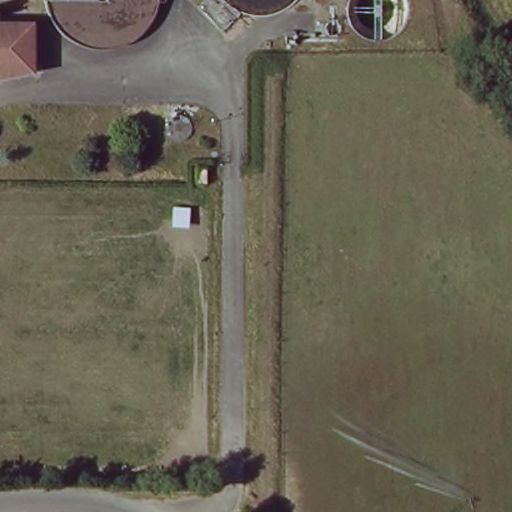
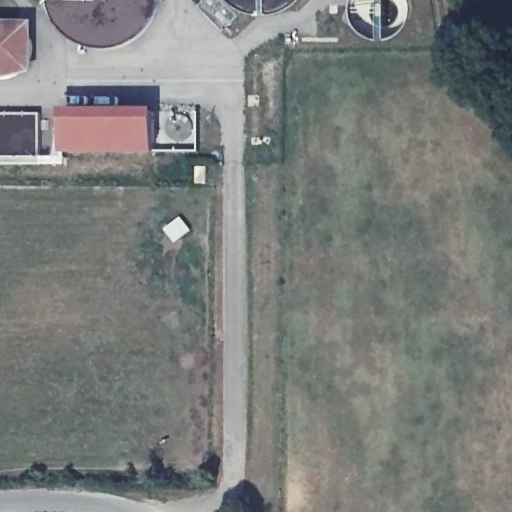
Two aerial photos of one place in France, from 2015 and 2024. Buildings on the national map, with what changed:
unchanged [(31,22),(30,74),(22,76),(13,77),(4,78),(0,78),(0,21),(31,22)]
new [(157,111),(157,154),(66,154),(65,111),(157,111)]
new [(41,113),(41,159),(0,159),(0,113),(41,113)]

